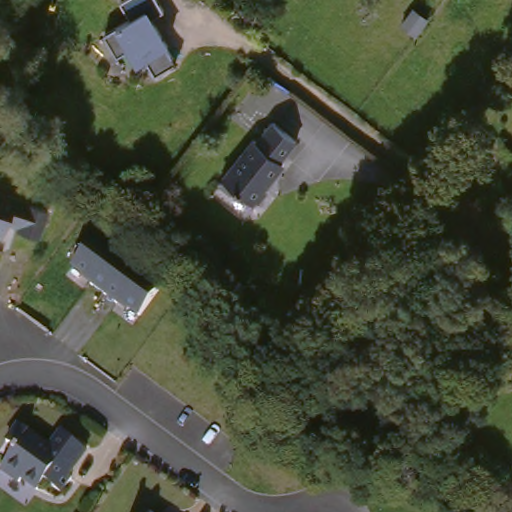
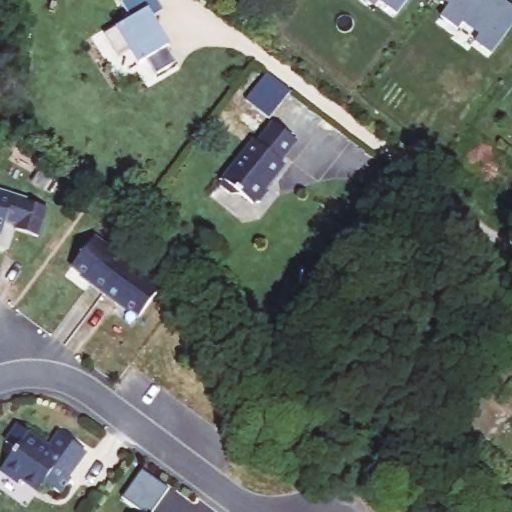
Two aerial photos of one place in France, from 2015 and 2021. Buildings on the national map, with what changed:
new [(395,15),(379,2),(381,0),(406,0),(395,15)]
new [(512,7),(512,25),(492,53),(475,40),(479,35),(461,22),(457,29),(439,16),(447,5),(441,0),(501,0),(512,7)]
unchanged [(170,46),(168,47),(178,62),(158,75),(148,60),(141,65),(131,50),(119,57),(105,37),(132,19),(130,16),(144,7),(170,46)]
unchanged [(301,137),(286,158),(288,160),(273,182),(274,189),(266,200),(259,201),(246,191),(239,192),(230,186),(226,183),(258,138),(261,141),(276,120),(301,137)]
unchanged [(8,227),(9,222),(0,219),(0,192),(19,198),(19,199),(39,206),(30,234),(8,227)]
unchanged [(141,312),(121,299),(119,302),(93,286),(95,282),(76,270),(96,240),(161,282),(141,312)]
unchanged [(36,437),(35,438),(48,448),(60,432),(85,451),(67,475),(70,477),(59,492),(43,480),(37,488),(21,477),(18,480),(0,466),(15,447),(5,440),(18,422),(36,437)]
new [(139,471),(167,490),(150,512),(146,512),(121,496),(139,471)]

